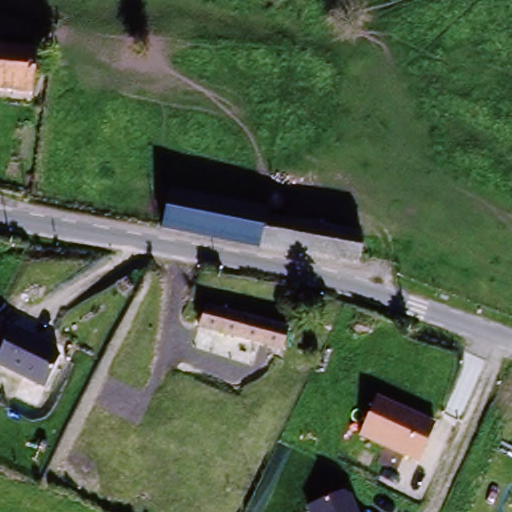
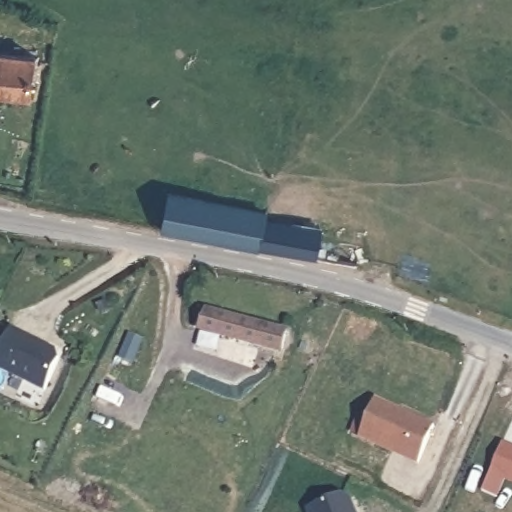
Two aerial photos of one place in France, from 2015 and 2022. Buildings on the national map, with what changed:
unchanged [(46,59),(40,101),(0,96),(0,53),(46,59)]
unchanged [(178,200),(277,222),(277,226),(270,255),(172,234),(178,200)]
unchanged [(270,255),(277,226),(367,245),(362,274),(270,255)]
unchanged [(287,353),(252,344),(210,333),(215,311),(257,324),(292,335),(287,353)]
unchanged [(57,350),(59,359),(44,391),(0,370),(0,355),(12,329),(57,350)]
unchanged [(417,466),(357,439),(375,399),(435,425),(417,466)]
new [(492,473),(505,446),(512,450),(512,483),(507,480),(498,499),(483,492),(492,473)]
unchanged [(305,509),(340,495),(350,498),(356,512),(307,512),(305,509)]

